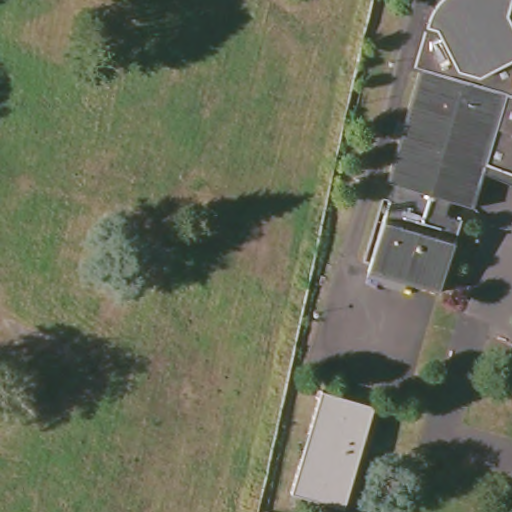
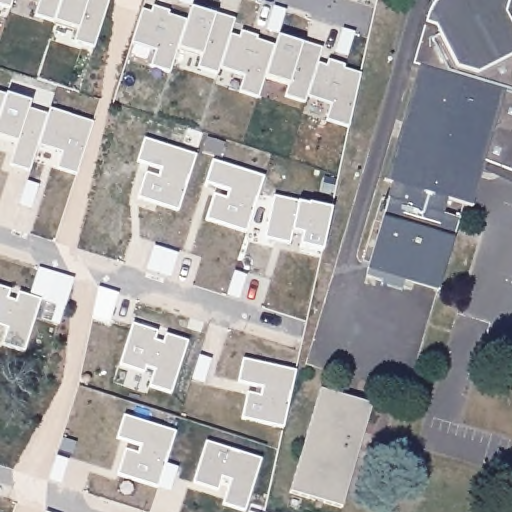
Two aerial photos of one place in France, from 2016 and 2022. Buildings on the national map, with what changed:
new [(0,6),(0,0),(14,0),(11,9),(0,6)]
new [(55,23),(35,17),(40,1),(37,0),(62,0),(55,23)]
new [(95,49),(75,42),(78,31),(55,23),(62,0),(110,0),(95,49)]
new [(192,7),(180,3),(181,0),(194,0),(192,7)]
unchanged [(482,164),(470,203),(472,205),(471,208),(435,196),(432,210),(455,218),(457,215),(460,216),(436,291),(433,291),(434,289),(369,269),(368,271),(365,270),(367,263),(387,197),(388,195),(391,195),(390,198),(413,204),(417,190),(383,178),(412,80),(405,78),(418,28),(420,23),(424,18),(427,14),(429,11),(432,8),(435,5),(438,3),(442,0),(512,0),(512,175),(482,164)]
new [(219,73),(199,66),(202,55),(179,47),(192,6),(215,14),(216,12),(237,18),(219,73)]
new [(171,73),(152,67),(157,51),(132,43),(143,10),(152,13),(154,7),(170,12),(170,15),(187,21),(171,73)]
new [(280,35),(267,31),(275,8),(287,11),(280,35)]
new [(351,58),(339,54),(347,30),(358,34),(351,58)]
new [(260,98),(240,92),(245,76),(220,68),(231,35),(240,38),(242,32),(258,37),(257,40),(276,46),(260,98)]
new [(306,104),(285,97),(289,86),(265,78),(278,37),(302,45),(303,43),(323,49),(306,104)]
new [(352,128),(327,120),(332,104),(308,97),(318,63),(327,66),(330,60),(346,65),(345,69),(364,75),(352,128)]
new [(58,169),(63,153),(38,145),(28,173),(9,167),(15,144),(0,139),(0,94),(30,104),(29,110),(48,116),(50,110),(92,123),(75,174),(58,169)]
new [(135,199),(144,172),(158,176),(160,169),(135,160),(140,139),(197,156),(178,212),(135,199)]
new [(247,234),(206,220),(213,195),(227,200),(229,192),(205,184),(212,161),(265,178),(247,234)]
new [(323,250),(301,245),(303,233),(294,231),(291,243),(265,237),(275,195),(333,208),(323,250)]
new [(236,272),(248,276),(240,299),(228,296),(236,272)]
new [(16,303),(20,294),(40,300),(27,343),(0,335),(0,287),(10,290),(7,300),(16,303)]
new [(150,386),(155,370),(145,366),(143,372),(120,366),(133,325),(157,334),(154,342),(162,345),(165,335),(185,343),(170,393),(150,386)]
new [(205,380),(193,377),(200,353),(212,357),(205,380)]
new [(242,359),(295,371),(285,430),(240,420),(247,393),(260,395),(261,387),(235,384),(242,359)]
unchanged [(375,404),(345,506),(292,490),(323,388),(375,404)]
new [(159,487),(118,474),(126,449),(139,453),(141,445),(118,437),(125,415),(177,432),(167,463),(179,467),(171,491),(159,487)]
new [(207,443),(262,460),(247,509),(224,502),(231,479),(221,475),(216,489),(195,483),(207,443)]
new [(55,458),(67,462),(60,485),(48,482),(55,458)]

